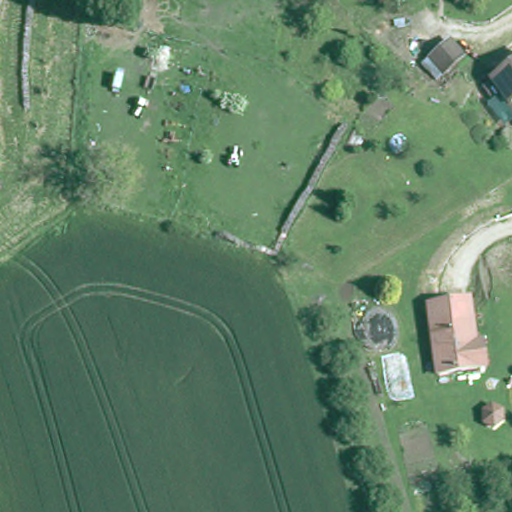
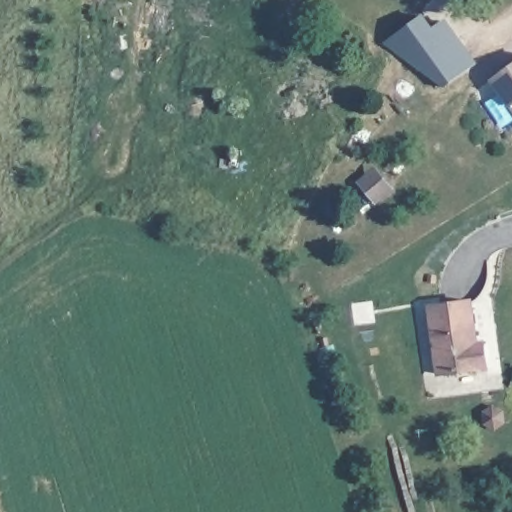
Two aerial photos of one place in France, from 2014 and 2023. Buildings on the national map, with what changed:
new [(477,63),(443,87),(383,43),(423,14),(433,27),(445,20),(477,63)]
unchanged [(512,64),(512,106),(492,79),(512,64)]
new [(377,204),(366,191),(361,185),(376,172),(381,177),(392,192),(377,204)]
unchanged [(438,373),(430,306),(471,301),(476,343),(484,342),(487,367),(438,373)]

